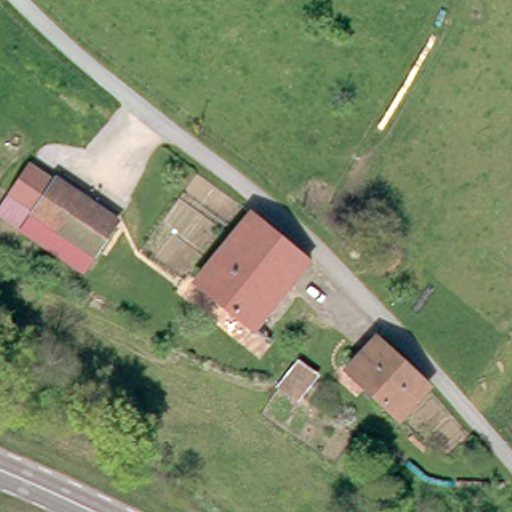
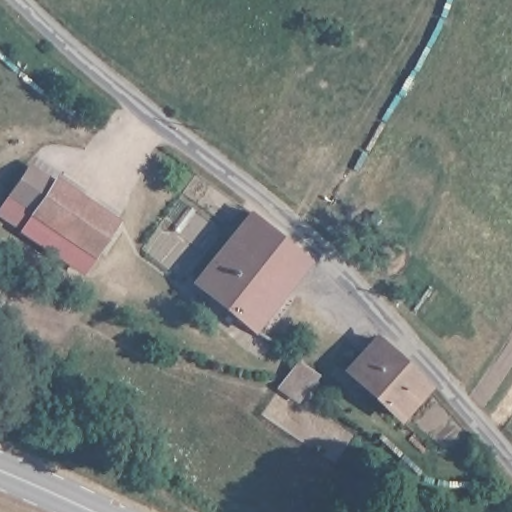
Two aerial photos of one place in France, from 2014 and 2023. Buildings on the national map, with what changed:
unchanged [(33,212),(94,253),(80,273),(0,218),(0,204),(28,161),(55,181),(50,189),(33,212)]
unchanged [(115,222),(94,253),(33,212),(55,181),(115,222)]
unchanged [(252,328),(197,283),(252,213),(309,259),(252,328)]
unchanged [(427,387),(398,419),(347,370),(376,339),(427,387)]
unchanged [(298,401),(280,386),(298,365),(316,380),(298,401)]

